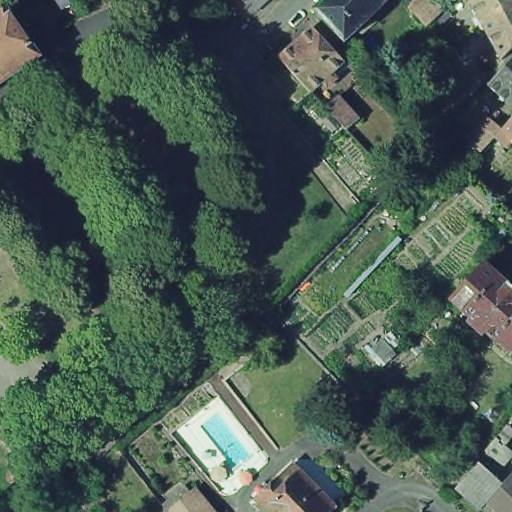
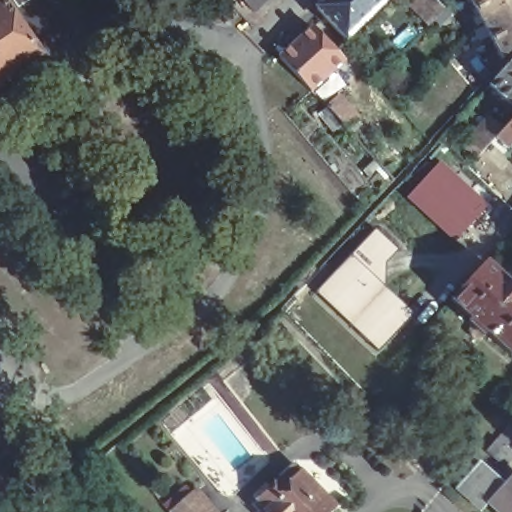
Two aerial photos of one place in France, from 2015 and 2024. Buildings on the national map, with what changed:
unchanged [(248,0),(272,0),(260,12),(248,0)]
unchanged [(320,8),(322,4),(327,0),(389,0),(349,39),(320,8)]
unchanged [(415,6),(421,0),(438,0),(447,9),(432,24),(415,6)]
unchanged [(474,0),(512,0),(512,1),(485,20),(474,0)]
unchanged [(44,55),(0,85),(0,6),(7,1),(44,55)]
unchanged [(505,58),(485,20),(512,1),(512,51),(505,58)]
unchanged [(331,85),(326,80),(316,89),(284,55),(316,25),(347,60),(335,71),(340,76),(331,85)]
unchanged [(512,62),(512,102),(492,84),(512,62)]
unchanged [(351,128),(350,129),(330,105),(341,95),(362,118),(351,128)]
unchanged [(484,128),(495,117),(506,128),(512,120),(512,144),(511,146),(499,135),(495,139),(485,150),(474,139),(484,128)]
new [(487,207),(464,229),(412,192),(439,161),(487,207)]
new [(397,251),(387,264),(385,288),(415,315),(380,352),(317,292),(375,231),(397,251)]
unchanged [(471,284),(489,263),(490,263),(512,284),(512,351),(491,333),(489,336),(474,323),(477,320),(456,300),(471,284)]
unchanged [(431,322),(442,334),(417,361),(405,350),(431,322)]
unchanged [(495,440),(512,454),(512,456),(505,465),(486,450),(495,440)]
unchanged [(298,463),(341,507),(336,512),(271,512),(272,511),(261,499),(298,463)]
unchanged [(492,503),(487,509),(463,487),(485,463),(510,485),(492,503)]
unchanged [(492,503),(510,485),(512,482),(512,512),(503,512),(492,503)]
unchanged [(174,512),(198,490),(218,512),(174,512)]

